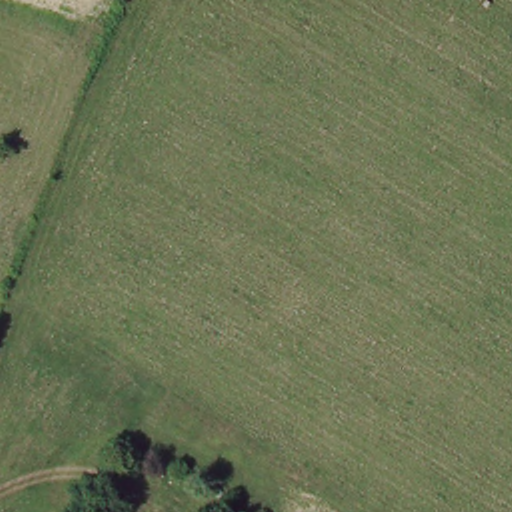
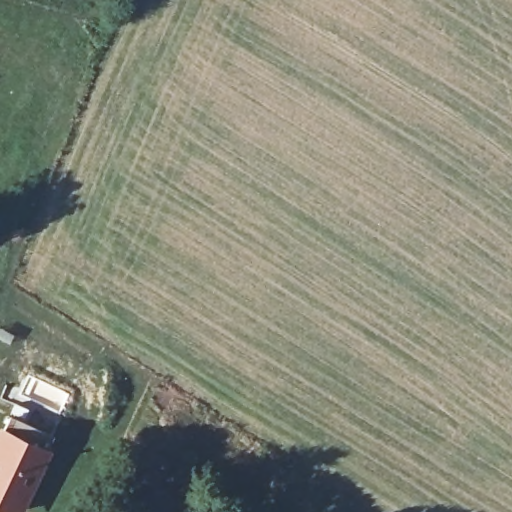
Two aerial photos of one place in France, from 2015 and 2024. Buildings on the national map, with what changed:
new [(5,413),(56,440),(23,512),(18,512),(0,503),(0,424),(5,413)]

